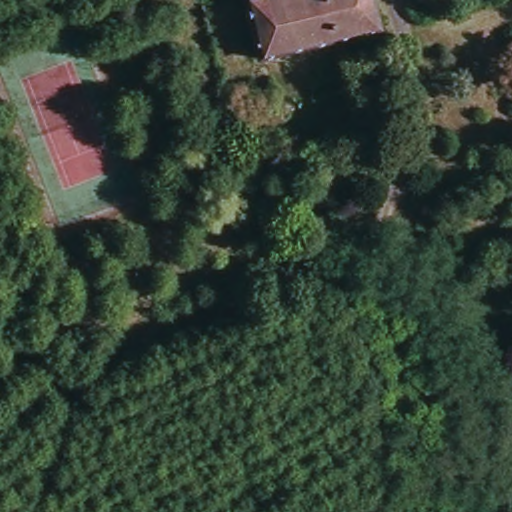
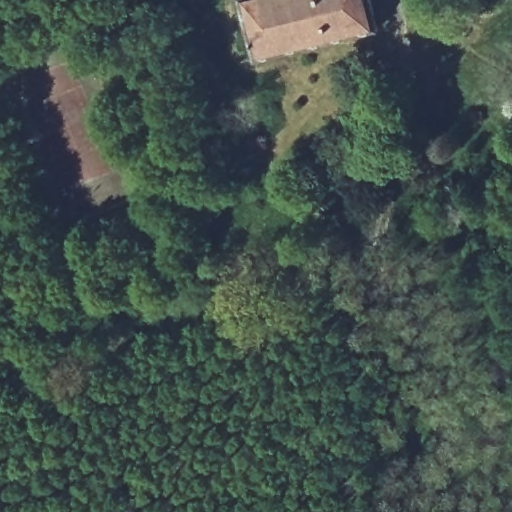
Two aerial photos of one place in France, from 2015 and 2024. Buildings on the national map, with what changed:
unchanged [(382,26),(260,58),(245,0),(375,0),(382,26)]

